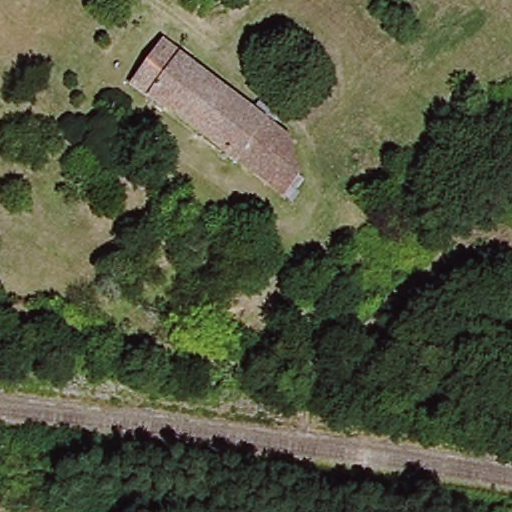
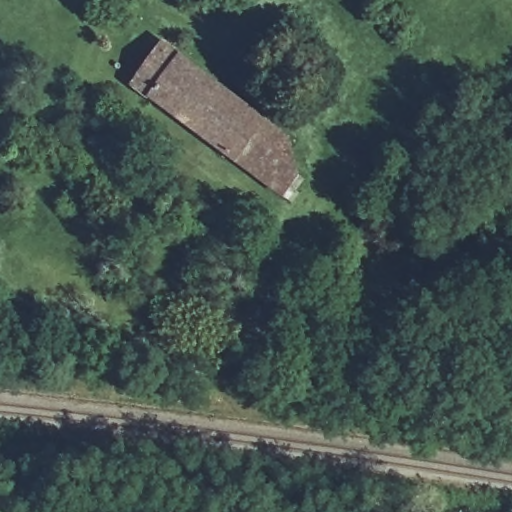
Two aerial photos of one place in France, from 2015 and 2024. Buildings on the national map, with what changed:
unchanged [(186,128),(129,85),(134,72),(154,45),(213,91),(186,128)]
unchanged [(213,91),(278,142),(288,178),(273,197),(186,128),(213,91)]

